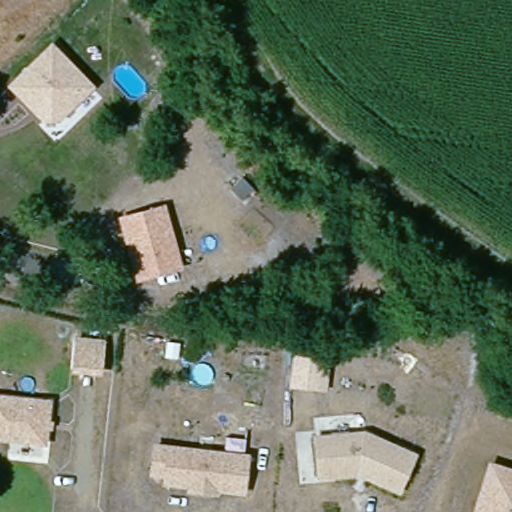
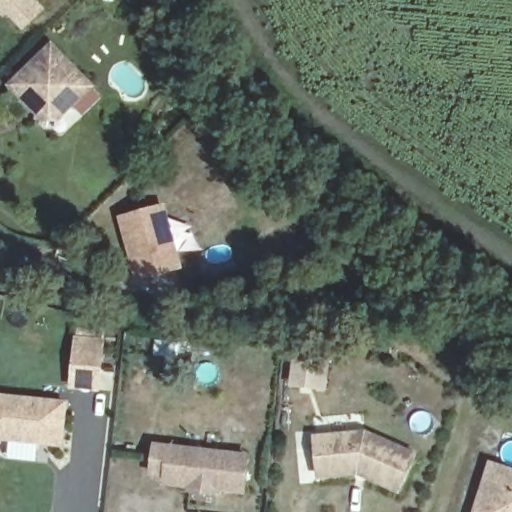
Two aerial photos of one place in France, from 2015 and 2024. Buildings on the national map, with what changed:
unchanged [(52,42),(96,87),(60,122),(41,122),(7,86),(52,42)]
unchanged [(136,282),(117,216),(166,205),(182,270),(136,282)]
unchanged [(70,374),(73,337),(106,340),(102,376),(70,374)]
unchanged [(290,389),(293,355),(330,360),(328,392),(290,389)]
unchanged [(48,445),(0,442),(0,396),(50,400),(48,445)]
unchanged [(419,455),(401,492),(358,474),(319,478),(310,436),(363,431),(419,455)]
unchanged [(250,453),(246,494),(150,485),(152,441),(250,453)]
unchanged [(512,512),(474,512),(489,462),(512,470),(512,512)]

